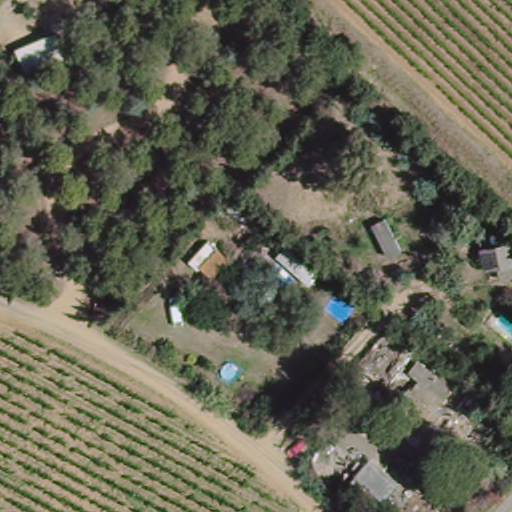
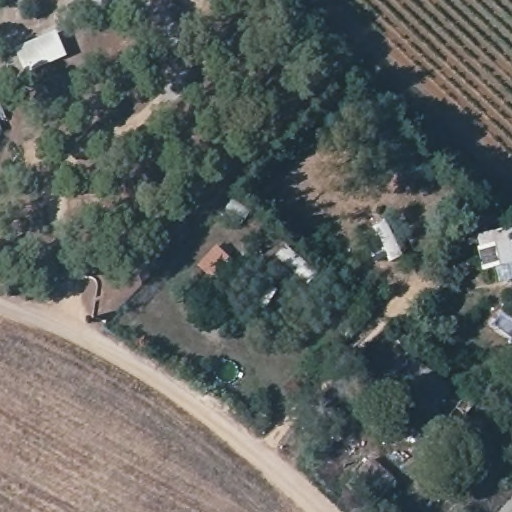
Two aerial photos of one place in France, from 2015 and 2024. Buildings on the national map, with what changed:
unchanged [(485,270),(482,250),(512,241),(512,266),(485,270)]

